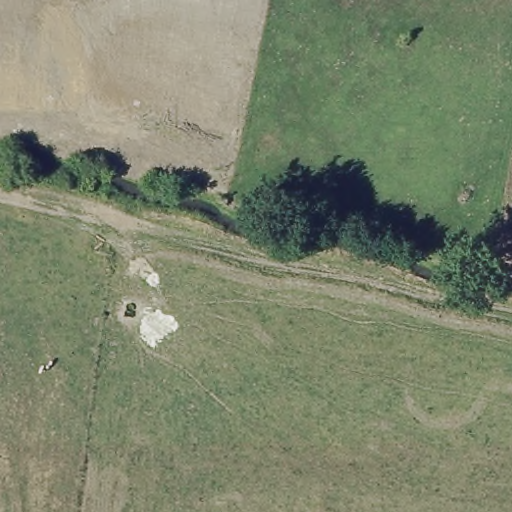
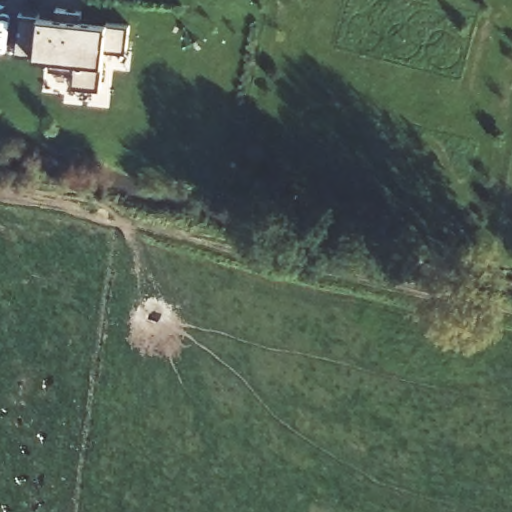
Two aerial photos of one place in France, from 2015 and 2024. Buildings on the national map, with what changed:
new [(20,12),(128,25),(125,50),(103,47),(98,87),(73,81),(74,70),(49,67),(50,56),(15,52),(20,12)]

